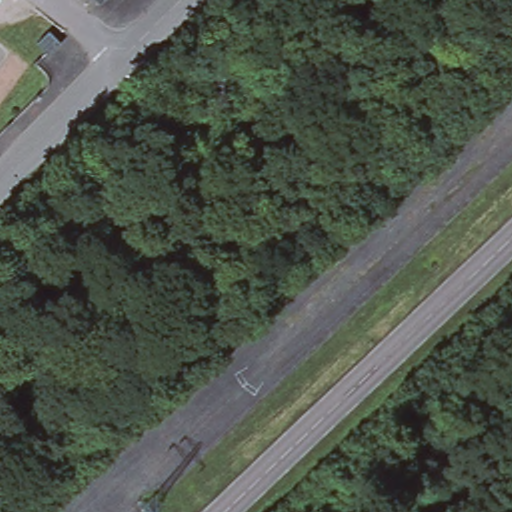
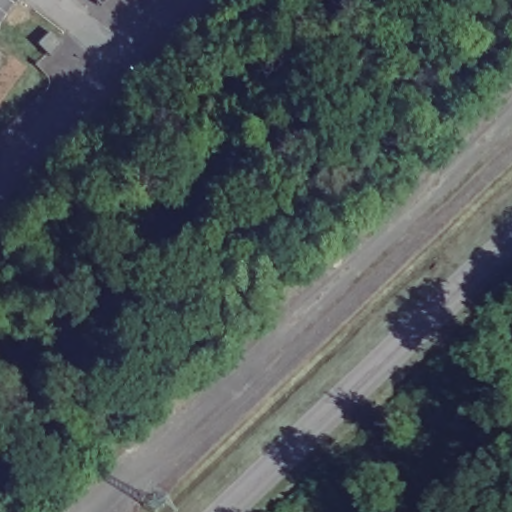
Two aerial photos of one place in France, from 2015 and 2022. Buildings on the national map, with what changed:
unchanged [(100,6),(94,0),(105,0),(100,6)]

